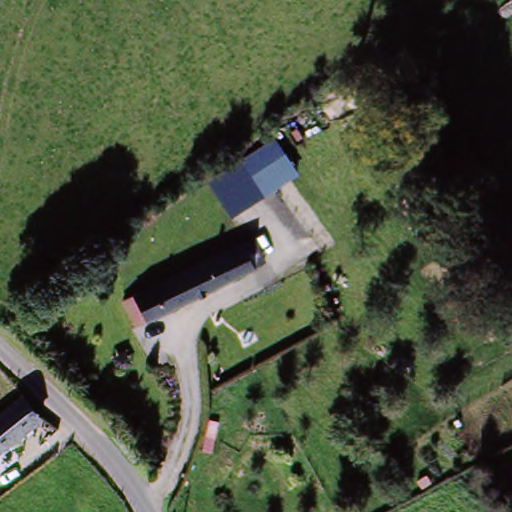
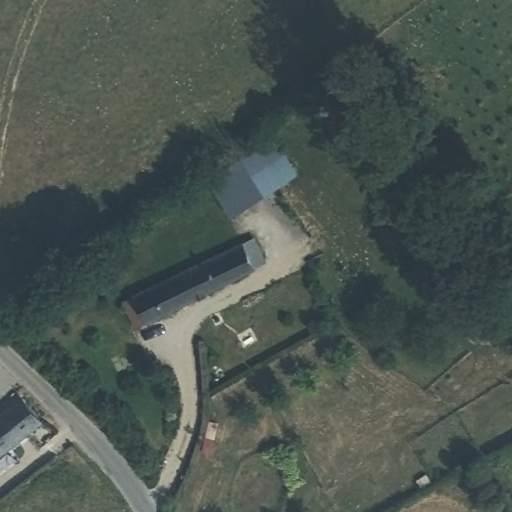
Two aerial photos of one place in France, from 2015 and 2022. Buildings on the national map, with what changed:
unchanged [(273,136),(298,174),(231,217),(208,180),(273,136)]
unchanged [(251,261),(166,338),(141,310),(226,234),(251,261)]
unchanged [(512,303),(495,279),(512,266),(512,303)]
unchanged [(0,457),(0,423),(21,405),(39,427),(0,457)]

